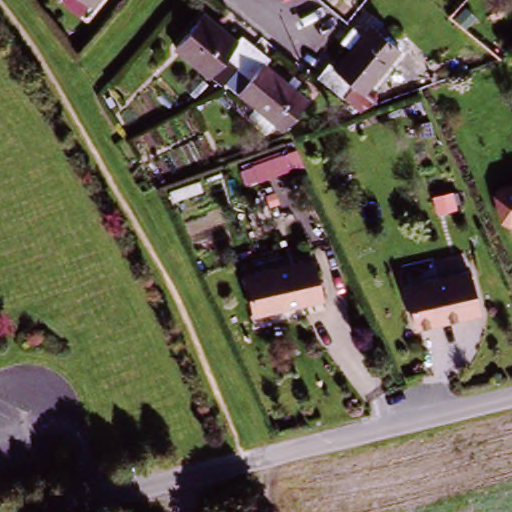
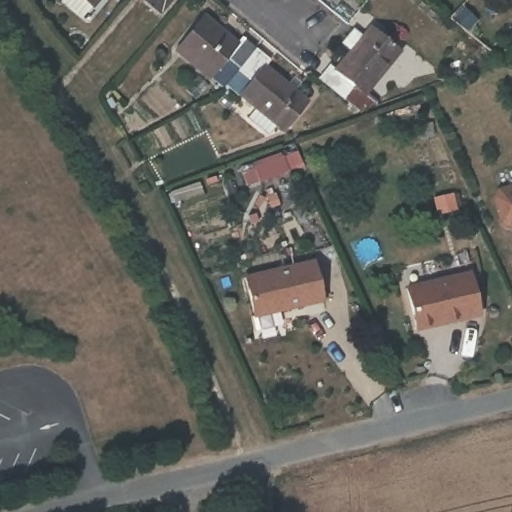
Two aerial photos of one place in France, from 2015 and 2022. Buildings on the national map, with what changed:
unchanged [(89,7),(82,0),(95,0),(89,7)]
unchanged [(240,67),(227,58),(210,77),(177,52),(204,19),(237,44),(242,40),(255,49),(240,67)]
unchanged [(358,117),(342,104),(317,83),(330,67),(340,73),(354,55),(343,47),(352,37),(362,45),(372,32),(400,54),(365,95),(371,100),(358,117)]
unchanged [(245,122),(255,110),(240,99),(245,92),(230,81),(240,67),(255,49),(270,61),(265,71),(285,86),(291,78),(301,86),(295,93),(307,102),(285,131),(277,127),(269,138),(245,122)]
unchanged [(255,169),(290,157),(297,172),(263,187),(255,169)]
unchanged [(433,202),(452,197),(454,215),(436,217),(433,202)]
unchanged [(244,277),(312,263),(321,306),(251,321),(244,277)]
unchanged [(407,291),(470,277),(477,316),(460,318),(460,325),(417,333),(407,291)]

